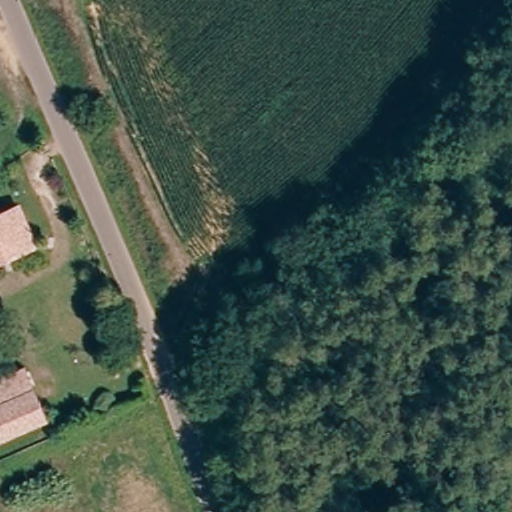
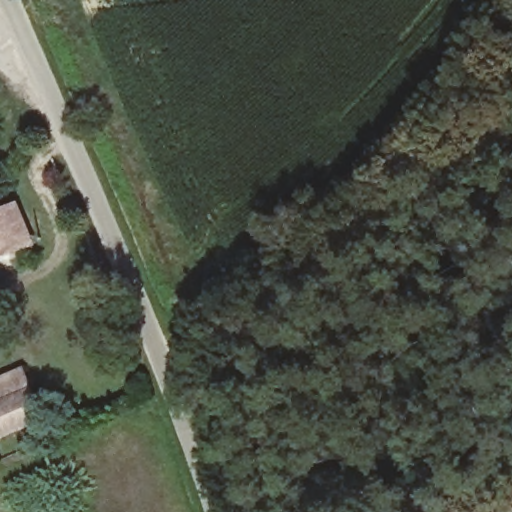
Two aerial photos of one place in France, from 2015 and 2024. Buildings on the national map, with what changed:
unchanged [(0,254),(0,210),(9,207),(24,244),(0,254)]
unchanged [(0,403),(0,380),(28,368),(37,388),(0,403)]
unchanged [(0,403),(37,388),(48,416),(0,435),(0,403)]

